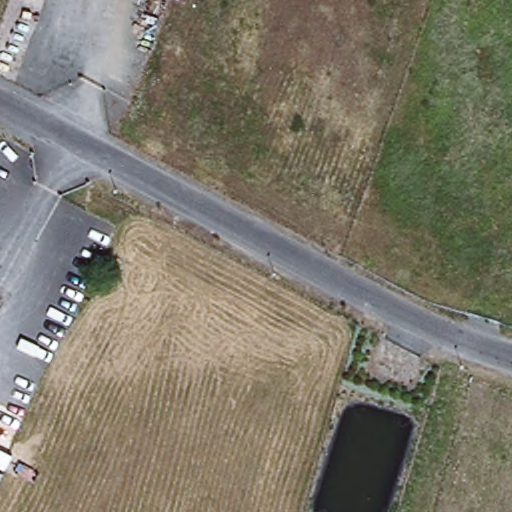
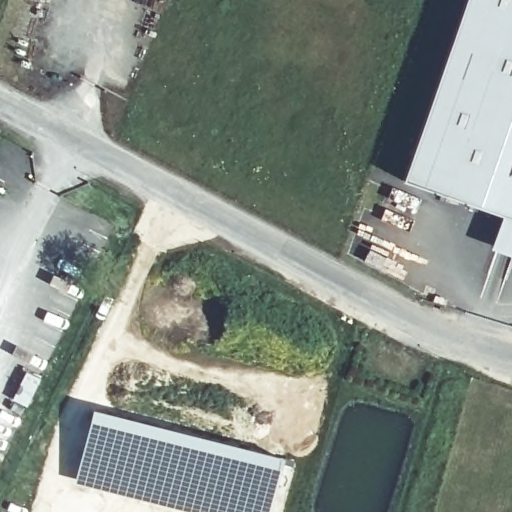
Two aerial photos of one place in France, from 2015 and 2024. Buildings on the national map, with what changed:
new [(465,0),(512,0),(512,219),(405,183),(465,0)]
new [(298,457),(285,512),(165,512),(70,487),(98,404),(298,457)]

